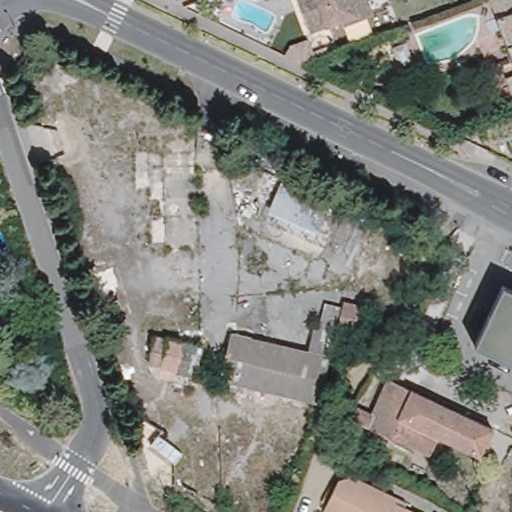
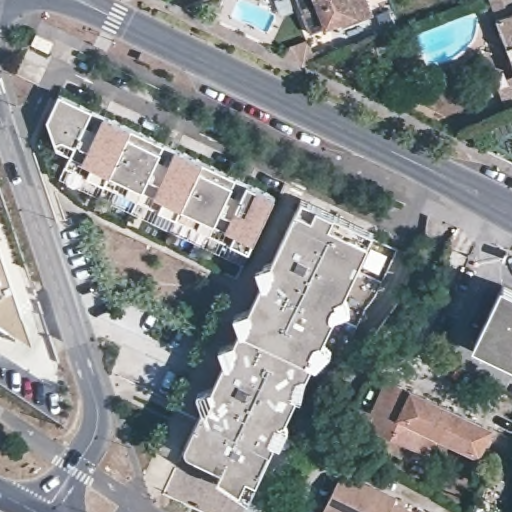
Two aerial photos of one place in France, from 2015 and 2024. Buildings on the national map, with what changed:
unchanged [(343,31),(340,24),(310,35),(297,0),(376,0),(369,2),(372,12),(375,20),(343,31)]
unchanged [(499,21),(492,3),(500,0),(512,0),(512,56),(499,21)]
unchanged [(406,23),(409,24),(410,25),(411,27),(414,31),(410,34),(409,33),(404,32),(402,31),(401,28),(401,27),(402,23),(406,23)]
unchanged [(285,54),(290,44),(308,38),(314,57),(302,62),(285,54)]
demolished [(68,56),(84,79),(45,108),(29,86),(68,56)]
new [(254,240),(250,251),(68,166),(73,155),(58,148),(48,119),(60,94),(274,194),(254,240)]
demolished [(169,167),(171,243),(93,245),(91,171),(169,167)]
demolished [(348,263),(261,226),(279,180),(366,218),(348,263)]
new [(370,242),(346,294),(351,309),(334,317),(324,342),(332,349),(316,365),(313,360),(304,377),(301,376),(293,394),(298,396),(287,420),(281,418),(271,442),(276,444),(251,498),(186,451),(201,408),(207,410),(216,393),(211,388),(225,361),(229,364),(238,346),(236,340),(240,331),(235,312),(249,308),(261,285),(254,266),(273,260),(273,263),(297,208),(302,199),(374,231),(370,242)]
unchanged [(26,346),(0,329),(0,269),(15,313),(26,346)]
unchanged [(474,345),(504,283),(512,287),(512,363),(474,345)]
demolished [(312,349),(316,327),(323,328),(326,313),(340,317),(342,304),(360,309),(354,335),(340,333),(323,403),(223,378),(234,331),(312,349)]
demolished [(156,333),(209,346),(202,377),(151,362),(156,333)]
unchanged [(356,405),(369,411),(386,377),(491,427),(478,454),(426,429),(417,448),(349,417),(356,405)]
unchanged [(344,483),(356,478),(401,502),(399,506),(409,512),(329,512),(332,506),(344,483)]

